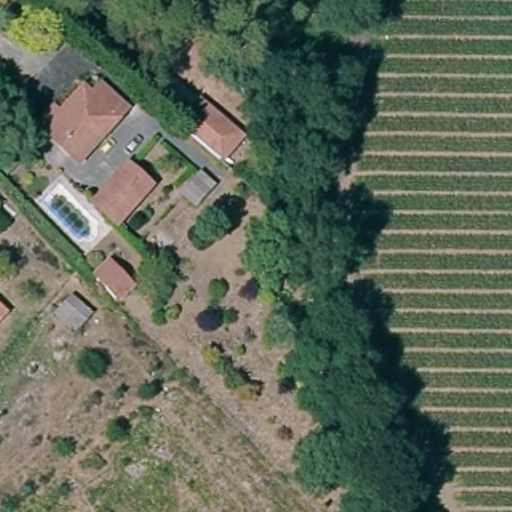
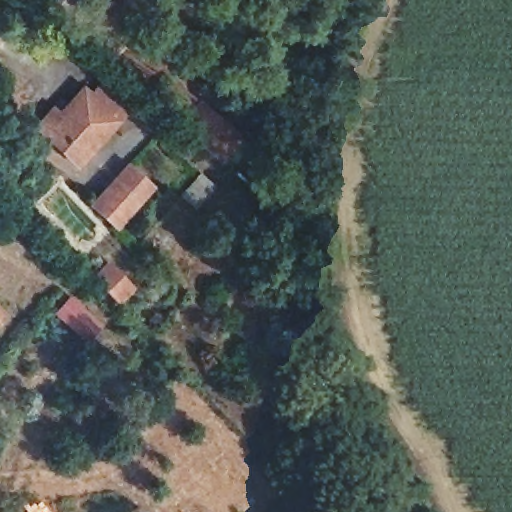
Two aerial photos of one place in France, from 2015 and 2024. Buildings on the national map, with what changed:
unchanged [(100,99),(109,89),(122,100),(134,111),(89,161),(56,132),(49,126),(62,112),(70,118),(94,94),(100,99)]
unchanged [(187,126),(210,102),(218,109),(247,137),(226,160),(196,134),(187,126)]
unchanged [(150,192),(118,225),(100,207),(131,174),(150,192)]
unchanged [(228,194),(213,209),(200,197),(214,181),(228,194)]

